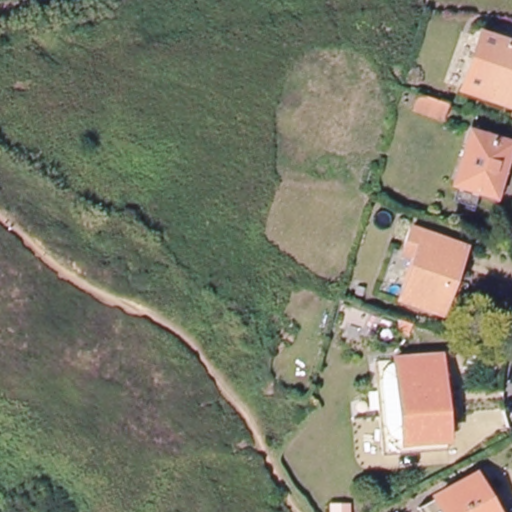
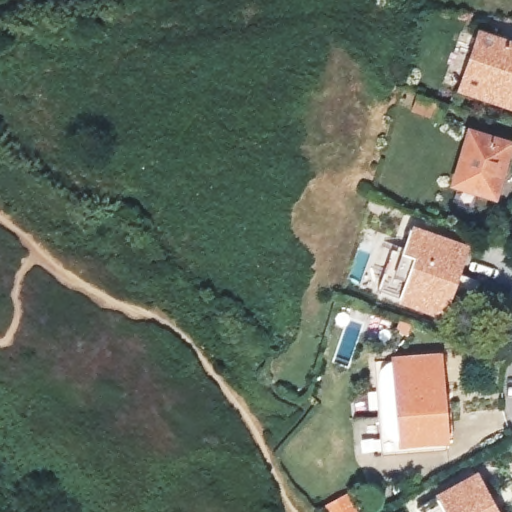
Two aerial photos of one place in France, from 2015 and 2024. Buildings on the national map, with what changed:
unchanged [(479,34),(512,46),(512,107),(459,88),(479,34)]
unchanged [(441,113),(411,102),(417,84),(448,95),(441,113)]
unchanged [(446,195),(452,179),(449,178),(466,130),(504,143),(487,191),(473,186),(467,203),(446,195)]
unchanged [(415,259),(406,256),(414,230),(466,251),(443,315),(401,300),(415,259)]
unchanged [(398,357),(445,357),(446,434),(439,435),(439,445),(401,447),(398,357)]
unchanged [(483,476),(503,512),(429,512),(425,506),(483,476)]

